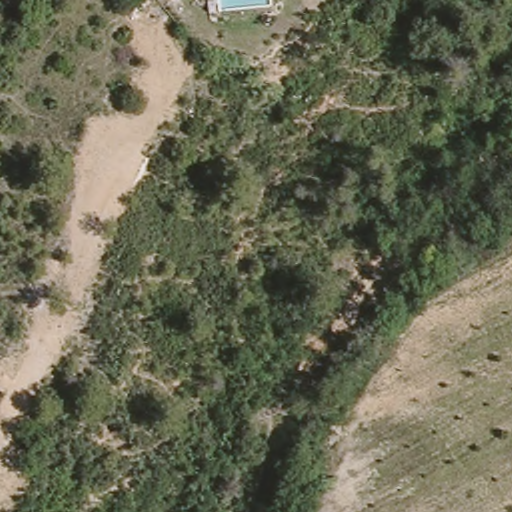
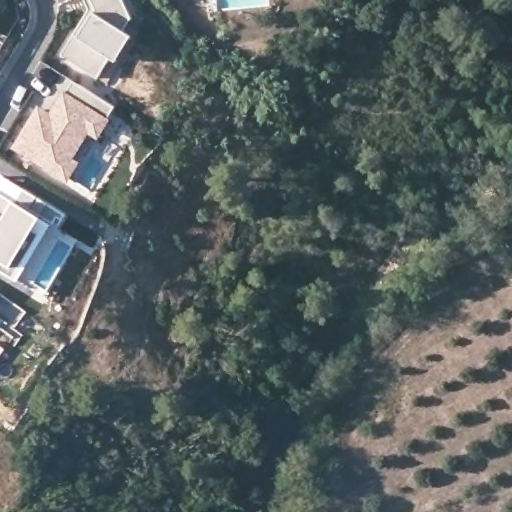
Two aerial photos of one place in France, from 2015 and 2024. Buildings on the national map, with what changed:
new [(75,34),(78,36),(95,11),(89,0),(127,0),(137,20),(102,79),(62,56),(75,34)]
new [(0,8),(0,3),(2,4),(0,8)]
new [(40,107),(57,117),(77,86),(118,111),(102,138),(92,132),(74,162),(81,167),(71,183),(15,150),(40,107)]
new [(8,178),(19,185),(59,209),(53,218),(58,221),(25,280),(0,267),(0,191),(1,191),(8,178)]
new [(0,320),(0,316),(2,317),(0,320)]

